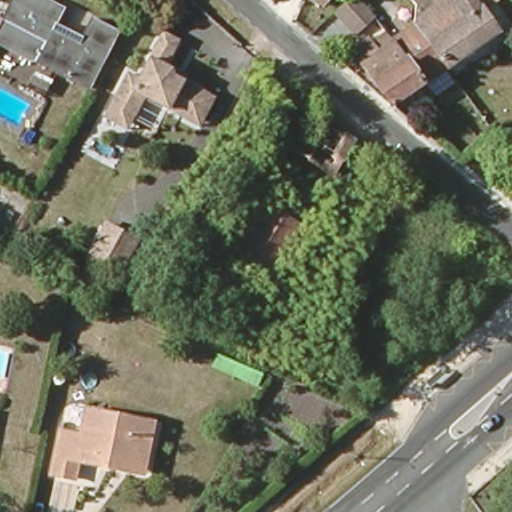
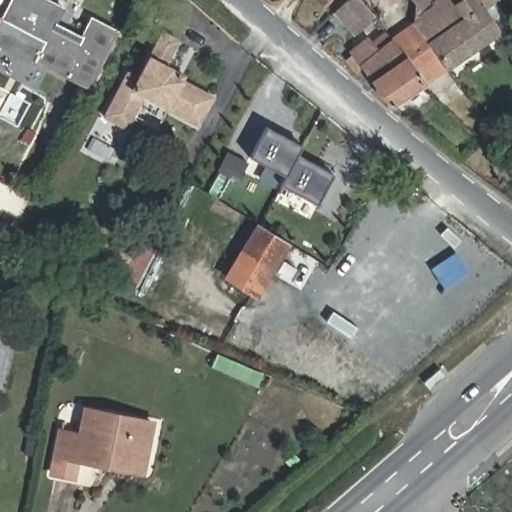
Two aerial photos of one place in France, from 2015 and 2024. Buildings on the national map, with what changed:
unchanged [(7,15),(14,0),(50,0),(68,9),(62,21),(87,34),(95,19),(120,32),(93,87),(39,60),(0,40),(0,11),(7,15)]
unchanged [(320,0),(337,0),(338,1),(329,10),(320,0)]
unchanged [(350,1),(352,0),(362,0),(375,18),(355,33),(337,13),(350,1)]
unchanged [(442,2),(444,0),(483,0),(505,32),(453,68),(423,27),(419,8),(413,0),(441,0),(442,2)]
unchanged [(400,43),(423,27),(453,68),(431,83),(400,43)]
unchanged [(185,118),(166,107),(160,118),(139,105),(132,115),(127,124),(106,111),(111,103),(130,70),(140,76),(167,32),(182,40),(167,65),(187,77),(185,81),(215,99),(205,116),(199,126),(185,118)]
unchanged [(396,107),(355,55),(369,43),(380,57),(400,43),(431,83),(396,107)]
new [(335,174),(319,205),(283,185),(287,177),(252,158),(266,129),(303,147),(299,155),(335,174)]
unchanged [(118,275),(87,258),(105,225),(136,241),(118,275)]
new [(262,299),(229,280),(259,226),(293,247),(262,299)]
unchanged [(263,372),(257,387),(184,355),(189,341),(263,372)]
unchanged [(112,467),(86,461),(84,478),(63,474),(71,431),(92,436),(98,409),(164,422),(155,464),(153,475),(112,467)]

